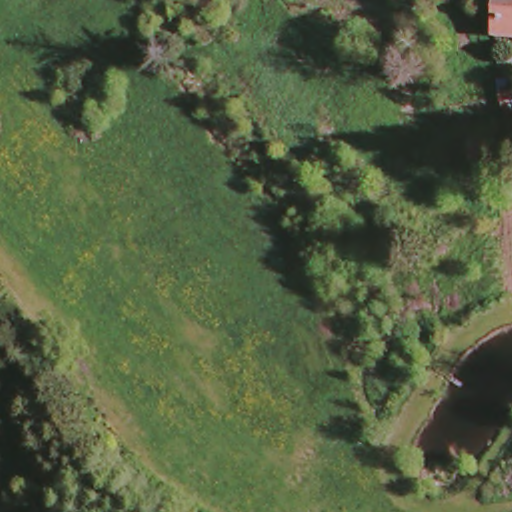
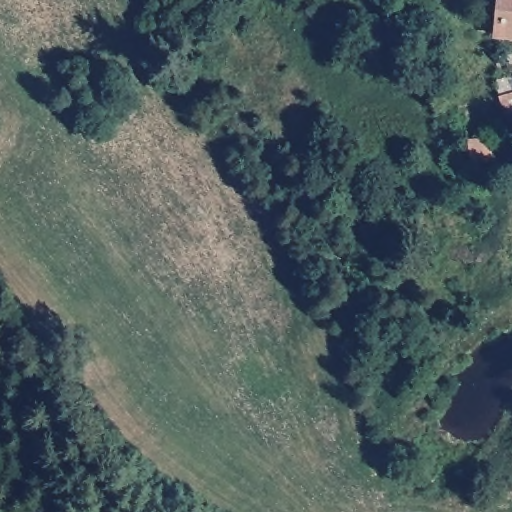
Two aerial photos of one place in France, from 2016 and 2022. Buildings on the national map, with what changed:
unchanged [(498,38),(498,0),(512,0),(512,39),(498,38)]

